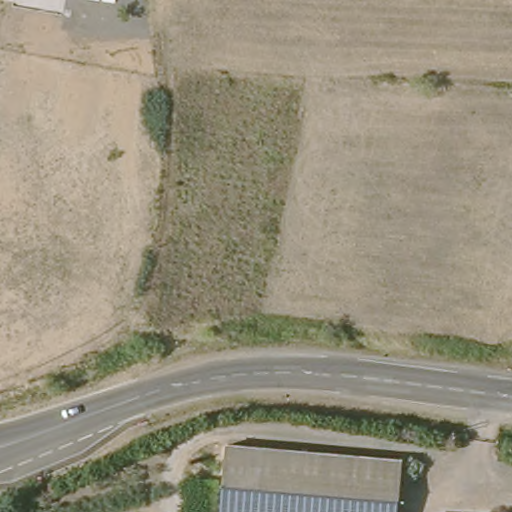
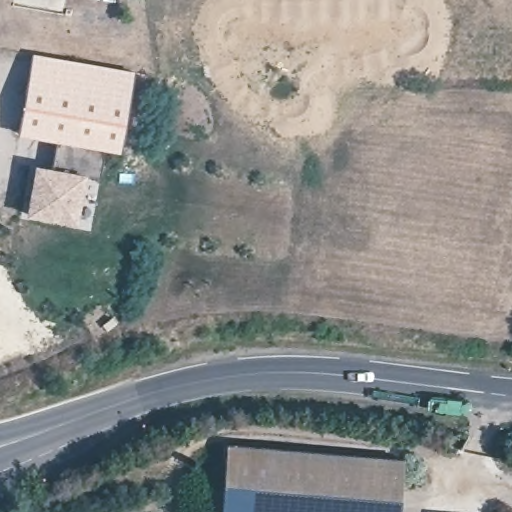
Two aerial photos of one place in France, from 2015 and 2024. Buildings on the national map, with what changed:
new [(35,165),(50,168),(57,143),(18,135),(32,53),(135,71),(120,154),(102,150),(100,177),(87,174),(77,226),(27,218),(35,165)]
unchanged [(229,448),(402,463),(396,512),(223,512),(229,448)]

